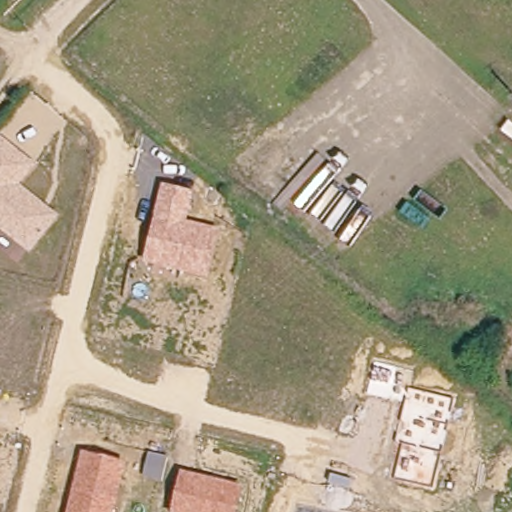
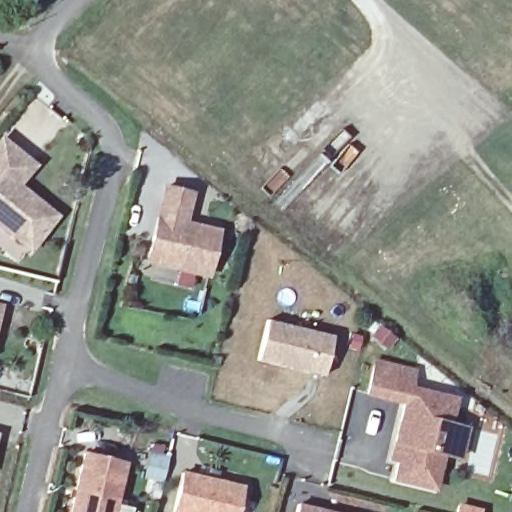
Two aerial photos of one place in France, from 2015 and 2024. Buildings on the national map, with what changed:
unchanged [(36,166),(20,184),(61,216),(30,254),(0,230),(0,135),(36,166)]
unchanged [(192,191),(186,221),(219,228),(208,277),(144,263),(161,184),(192,191)]
new [(266,321),(333,337),(323,377),(257,361),(266,321)]
new [(372,397),(365,396),(371,358),(416,368),(412,387),(458,396),(453,423),(468,427),(461,460),(444,456),(436,492),(392,481),(395,463),(389,461),(400,406),(372,397)]
new [(152,445),(164,448),(161,458),(168,459),(162,483),(144,478),(152,445)]
unchanged [(81,450),(125,461),(115,512),(67,512),(81,450)]
unchanged [(237,512),(172,512),(180,471),(242,485),(237,512)]
new [(336,512),(295,512),(297,503),(336,512)]

